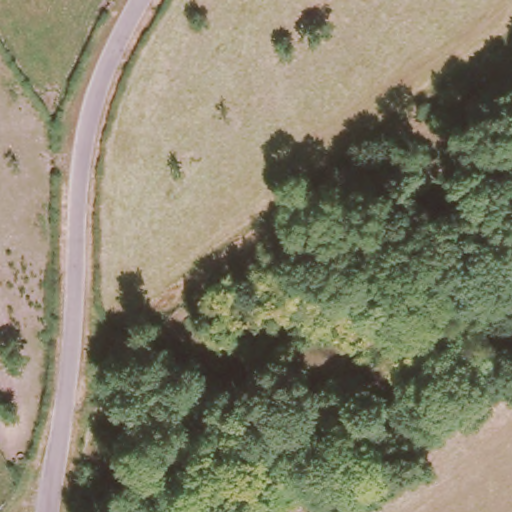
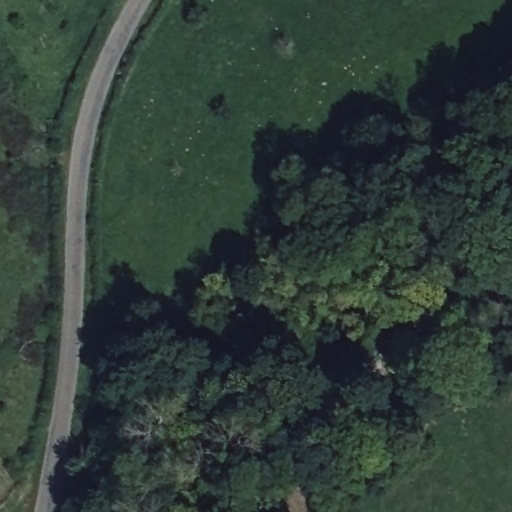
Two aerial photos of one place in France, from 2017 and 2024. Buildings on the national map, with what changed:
[]

